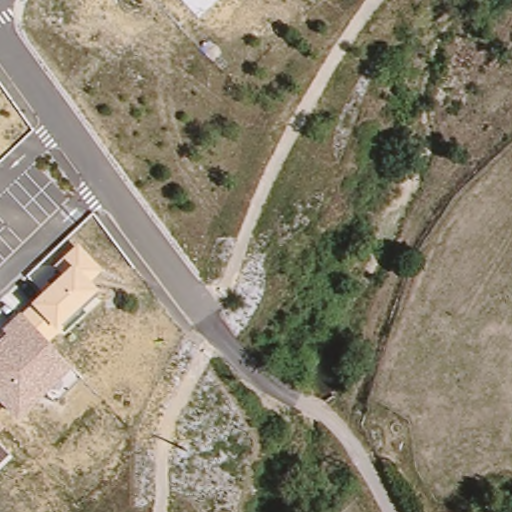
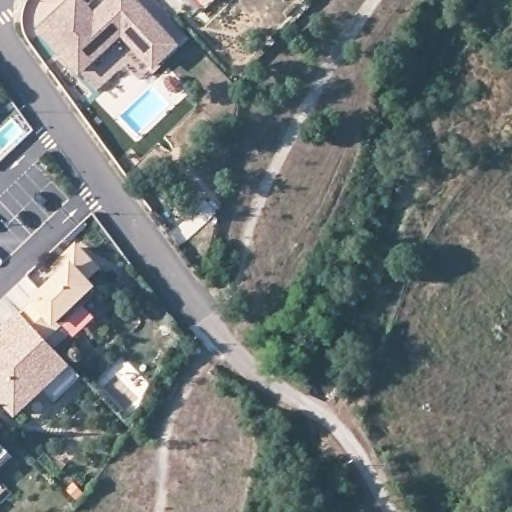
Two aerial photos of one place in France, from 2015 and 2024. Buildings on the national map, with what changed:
new [(155,70),(122,37),(80,76),(39,30),(72,0),(83,0),(95,12),(109,0),(137,0),(180,45),(155,70)]
unchanged [(5,333),(0,329),(18,310),(22,313),(32,305),(30,302),(57,276),(51,266),(77,242),(102,267),(89,280),(97,287),(56,325),(62,328),(48,340),(71,365),(82,378),(55,403),(43,392),(16,417),(0,400),(0,338),(5,333)]
unchanged [(5,425),(0,430),(0,420),(5,425)]
unchanged [(1,437),(0,438),(0,437),(1,437)]
unchanged [(8,455),(6,456),(0,463),(0,446),(8,455)]

